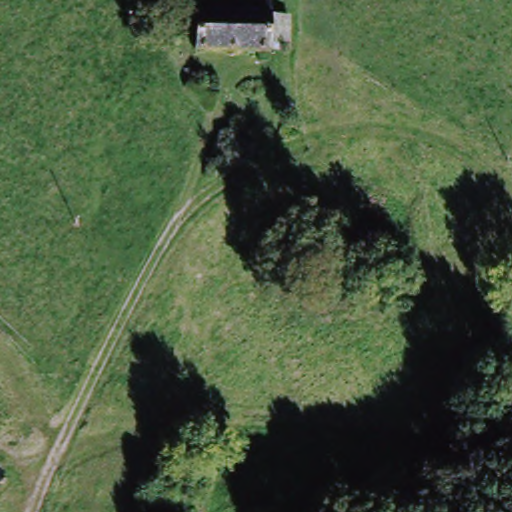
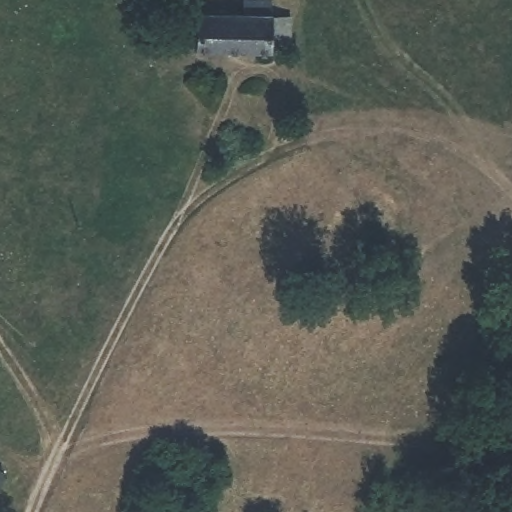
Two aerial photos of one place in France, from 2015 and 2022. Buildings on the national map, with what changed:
unchanged [(288,48),(266,47),(266,52),(195,50),(196,15),(240,16),(240,1),(267,1),(266,16),(289,17),(288,48)]

